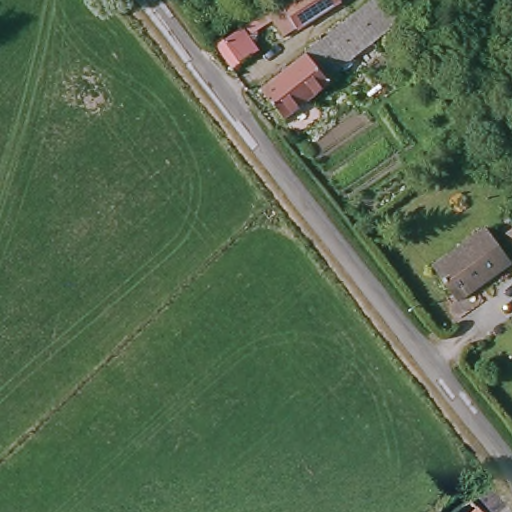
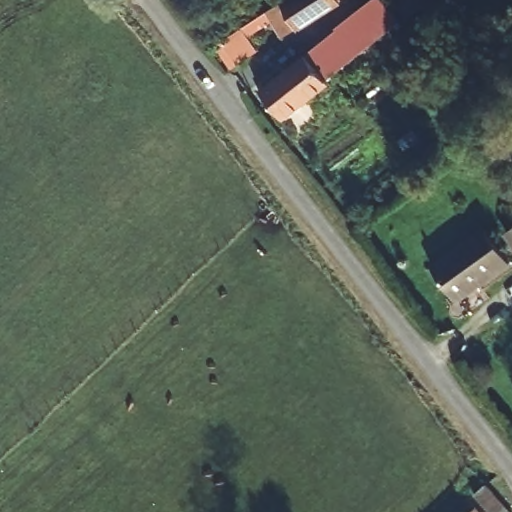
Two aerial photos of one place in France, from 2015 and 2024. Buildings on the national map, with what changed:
unchanged [(232,41),(304,0),(353,0),(298,33),(289,21),(267,36),(274,46),(249,62),(246,65),(232,41)]
unchanged [(413,0),(443,0),(423,14),(413,0)]
unchanged [(378,1),(397,25),(364,49),(374,63),(348,83),(336,68),(326,76),(306,51),(378,1)]
unchanged [(306,51),(326,76),(323,78),(327,83),(277,120),(253,88),(306,51)]
unchanged [(512,248),(504,238),(512,232),(512,248)]
unchanged [(483,233),(508,265),(453,307),(427,274),(483,233)]
unchanged [(469,499),(482,487),(504,512),(480,512),(469,499)]

